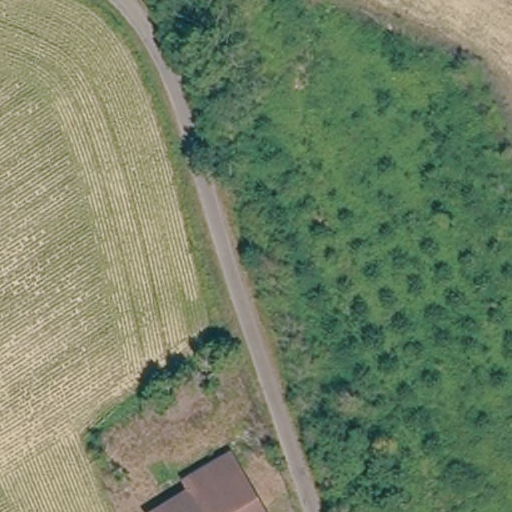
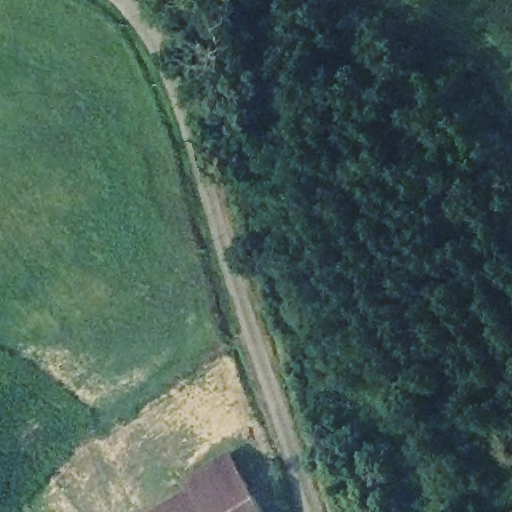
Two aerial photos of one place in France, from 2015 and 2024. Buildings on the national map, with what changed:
unchanged [(195,497),(189,488),(235,461),(266,512),(171,512),(195,497)]

